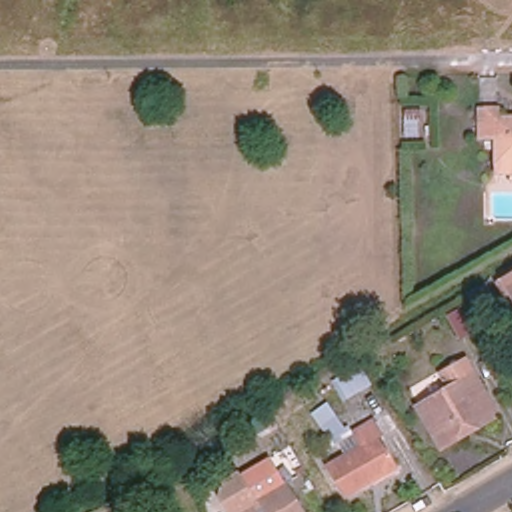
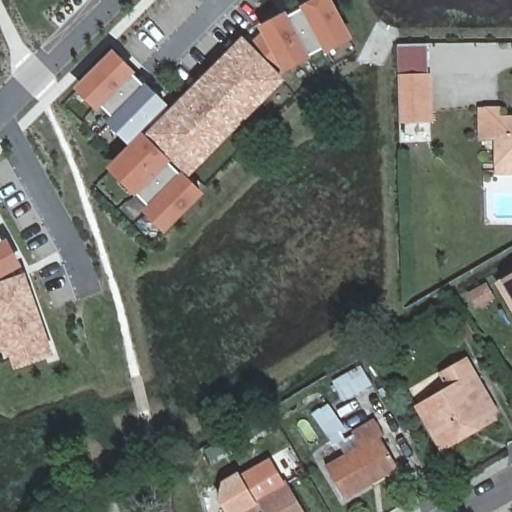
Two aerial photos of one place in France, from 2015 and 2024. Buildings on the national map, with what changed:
new [(329,0),(347,35),(286,68),(264,28),(317,0),(329,0)]
new [(247,45),(249,47),(266,31),(283,65),(183,165),(155,137),(247,45)]
new [(157,150),(145,138),(167,116),(165,114),(148,131),(142,125),(164,104),(172,111),(242,40),(247,45),(155,137),(163,145),(157,150)]
new [(397,43),(427,42),(427,76),(429,120),(400,120),(399,76),(397,43)]
new [(113,54),(164,104),(131,135),(82,86),(113,54)]
new [(275,73),(281,80),(190,171),(183,165),(275,73)]
unchanged [(497,136),(481,136),(481,109),(498,109),(498,118),(512,118),(512,172),(498,172),(497,136)]
new [(168,225),(135,191),(138,187),(115,164),(143,136),(200,192),(168,225)]
new [(4,244),(6,242),(17,264),(0,274),(0,236),(4,244)]
new [(17,280),(0,286),(0,274),(13,267),(17,280)]
unchanged [(512,271),(512,301),(499,278),(512,271)]
new [(23,278),(45,339),(8,353),(0,328),(0,286),(23,278)]
unchanged [(494,297),(477,307),(468,293),(485,283),(494,297)]
new [(45,339),(50,352),(18,363),(14,351),(45,339)]
unchanged [(461,441),(443,452),(419,412),(452,393),(443,379),(466,365),(482,392),(495,414),(490,417),(493,422),(461,441)]
unchanged [(370,385),(344,398),(334,380),(360,366),(370,385)]
unchanged [(343,426),(329,436),(314,413),(327,405),(343,426)]
unchanged [(344,497),(326,466),(346,455),(336,436),(353,427),(355,431),(376,420),(385,435),(381,437),(396,463),(398,467),(372,481),(344,497)]
unchanged [(221,497),(223,482),(235,476),(251,503),(285,483),(302,512),(229,512),(221,497)]

